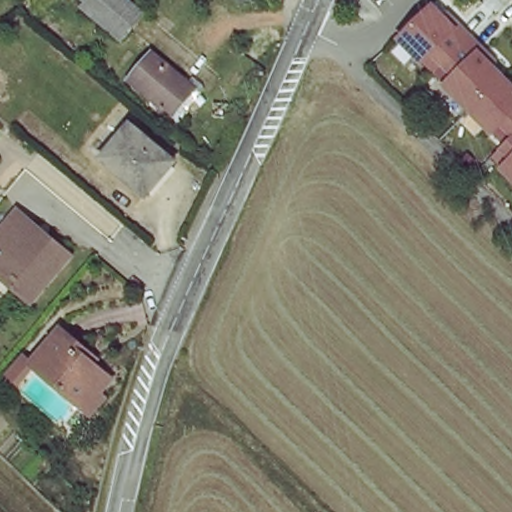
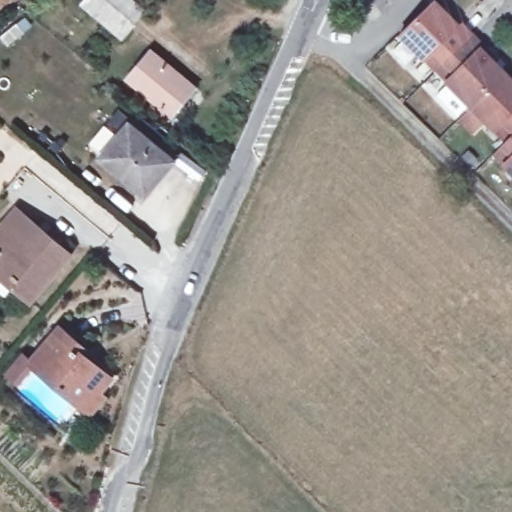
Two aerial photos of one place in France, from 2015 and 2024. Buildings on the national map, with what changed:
unchanged [(81,8),(73,0),(130,0),(145,13),(121,40),(81,8)]
unchanged [(427,49),(418,59),(394,35),(427,3),(442,18),(446,14),(466,34),(439,61),(427,49)]
unchanged [(441,82),(450,73),(439,61),(466,34),(486,54),(482,58),(497,73),(465,105),(441,82)]
unchanged [(186,104),(174,119),(163,111),(165,109),(132,82),(155,54),(191,83),(199,89),(186,104)]
unchanged [(497,120),(489,129),(465,105),(497,73),(512,87),(512,128),(511,129),(510,130),(509,131),(497,120)]
unchanged [(499,164),(509,155),(497,144),(509,131),(510,130),(511,129),(512,128),(512,177),(499,164)]
unchanged [(162,178),(147,196),(104,162),(130,130),(166,160),(172,165),(162,178)]
unchanged [(67,259),(27,304),(0,281),(0,227),(14,212),(67,259)]
unchanged [(66,332),(93,354),(90,358),(116,380),(105,394),(99,391),(87,406),(38,366),(66,332)]

